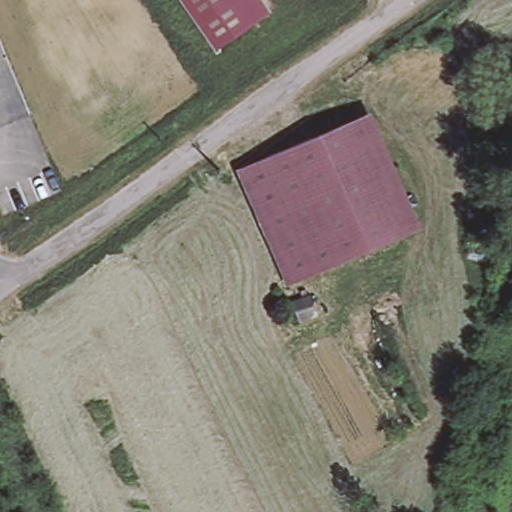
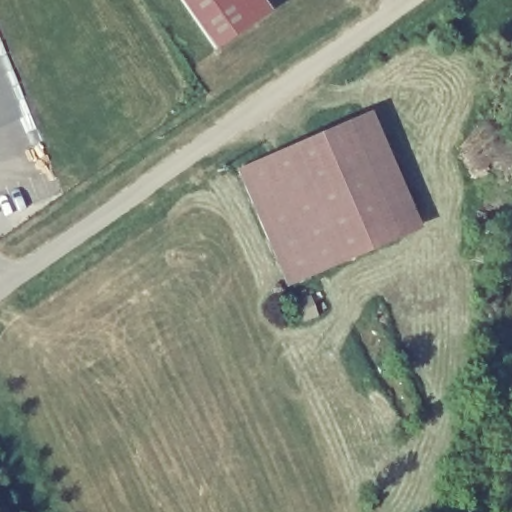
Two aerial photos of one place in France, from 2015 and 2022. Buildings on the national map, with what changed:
unchanged [(181,0),(263,0),(271,12),(218,51),(181,0)]
unchanged [(345,114),(357,109),(367,105),(415,215),(404,220),(392,225),(305,264),(282,274),(237,160),(256,152),(345,114)]
unchanged [(0,147),(0,143),(2,146),(0,147)]

